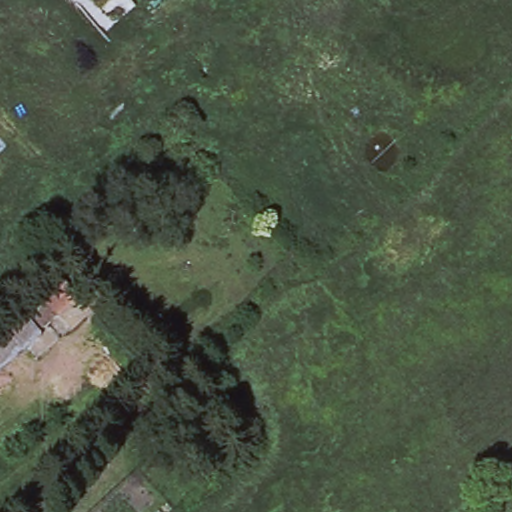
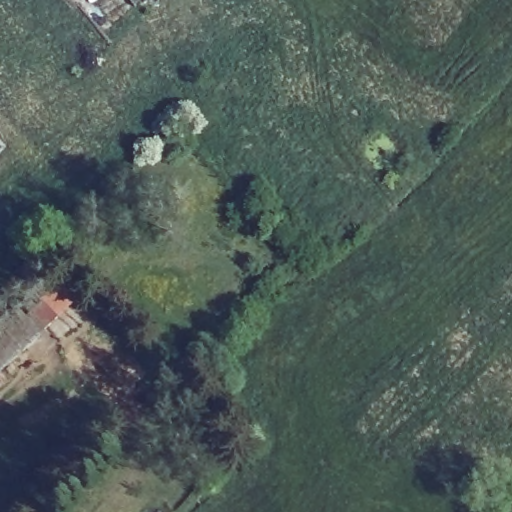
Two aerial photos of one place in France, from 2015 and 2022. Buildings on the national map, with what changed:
unchanged [(60,279),(78,299),(0,374),(0,332),(60,279)]

